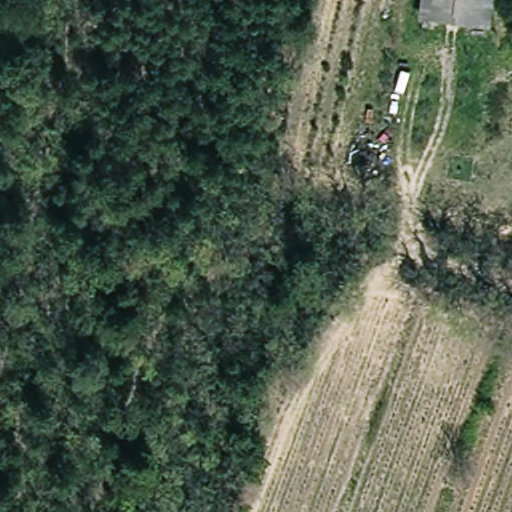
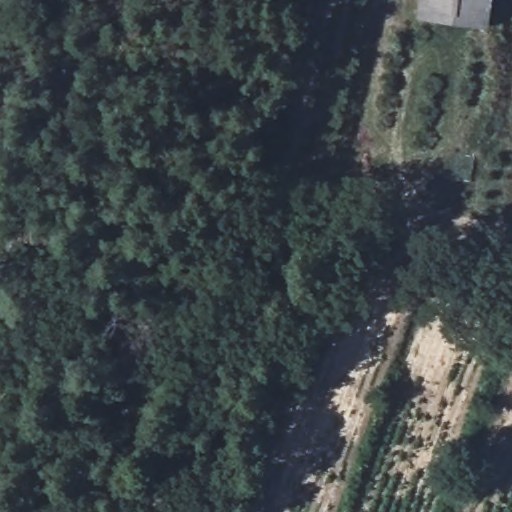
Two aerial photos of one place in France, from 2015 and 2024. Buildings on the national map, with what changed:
unchanged [(490,26),(422,19),(424,0),(493,0),(490,26)]

